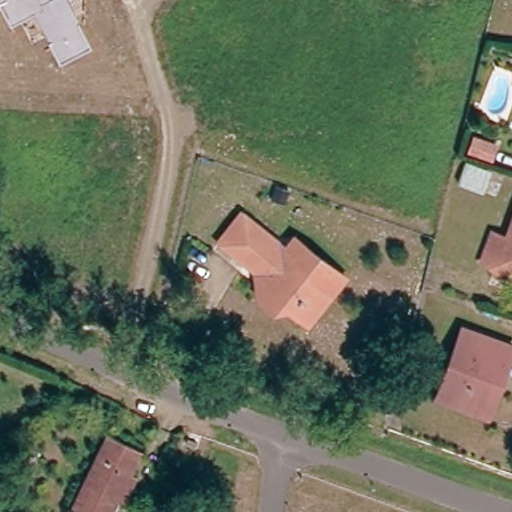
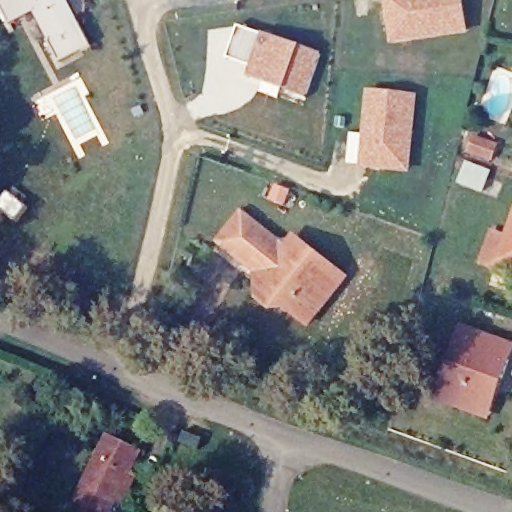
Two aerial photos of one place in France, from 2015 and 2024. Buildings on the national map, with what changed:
unchanged [(91,50),(58,64),(32,14),(10,26),(0,5),(0,0),(67,0),(91,50)]
new [(391,45),(383,0),(463,0),(468,34),(391,45)]
new [(247,76),(250,66),(227,59),(239,27),(320,55),(305,99),(247,76)]
new [(360,168),(365,90),(417,96),(410,174),(360,168)]
unchanged [(265,297),(267,267),(232,236),(254,211),(270,227),(266,234),(278,245),(283,237),(297,249),(307,235),(330,253),(355,276),(318,321),(286,297),(278,307),(265,297)]
unchanged [(498,261),(486,255),(497,228),(509,232),(512,225),(512,271),(497,266),(498,261)]
unchanged [(436,394),(463,325),(512,343),(512,357),(503,377),(490,414),(482,412),(436,394)]
unchanged [(99,512),(82,505),(114,437),(148,454),(121,512),(99,512)]

